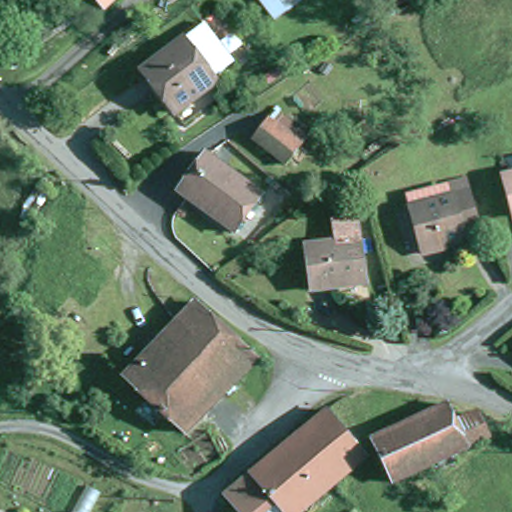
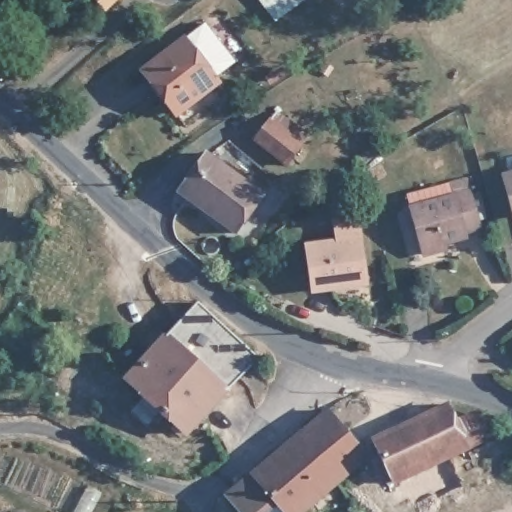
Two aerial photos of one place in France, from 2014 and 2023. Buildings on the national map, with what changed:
unchanged [(200,85),(172,45),(190,32),(217,72),(200,85)]
unchanged [(204,88),(160,120),(129,74),(172,45),(200,85),(204,88)]
unchanged [(203,155),(262,191),(239,230),(178,194),(203,155)]
unchanged [(405,202),(441,192),(445,205),(450,203),(446,190),(462,186),(476,233),(451,241),(452,246),(440,250),(442,255),(421,261),(405,202)]
unchanged [(512,186),(512,218),(504,189),(512,186)]
unchanged [(310,260),(310,257),(337,251),(332,229),(353,224),(368,286),(319,297),(310,260)]
unchanged [(256,361),(184,436),(124,377),(194,301),(256,361)]
unchanged [(367,443),(442,409),(449,422),(471,412),(484,440),(387,484),(367,443)]
unchanged [(293,512),(234,512),(222,497),(323,411),(362,455),(329,482),(293,512)]
unchanged [(324,512),(293,512),(329,482),(332,487),(342,499),(324,512)]

